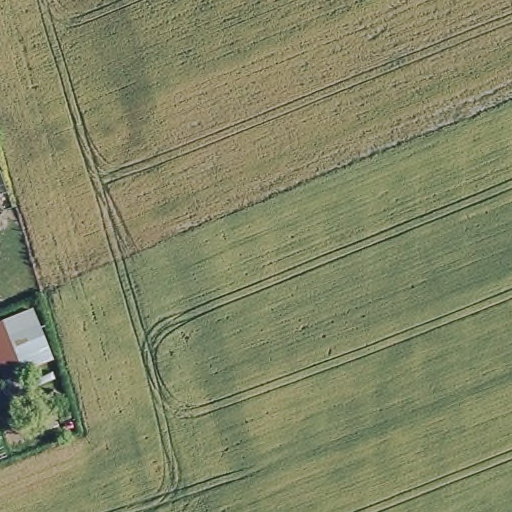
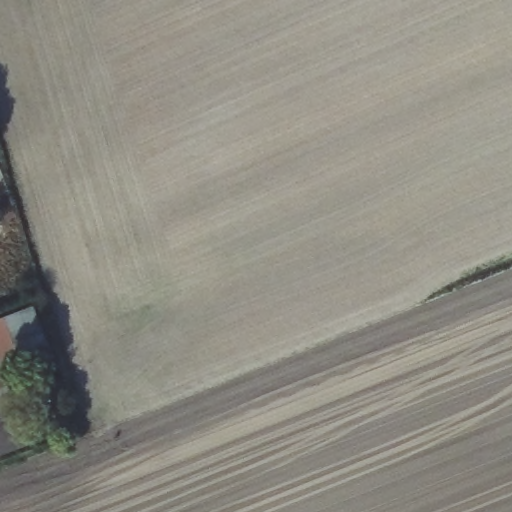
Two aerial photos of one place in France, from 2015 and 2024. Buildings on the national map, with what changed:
unchanged [(34,306),(55,358),(5,378),(0,365),(0,319),(34,306)]

